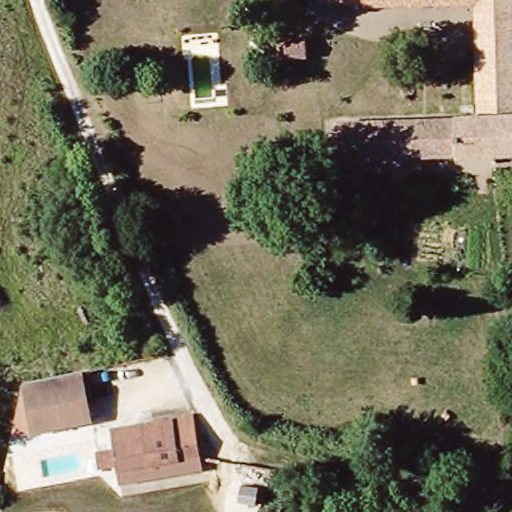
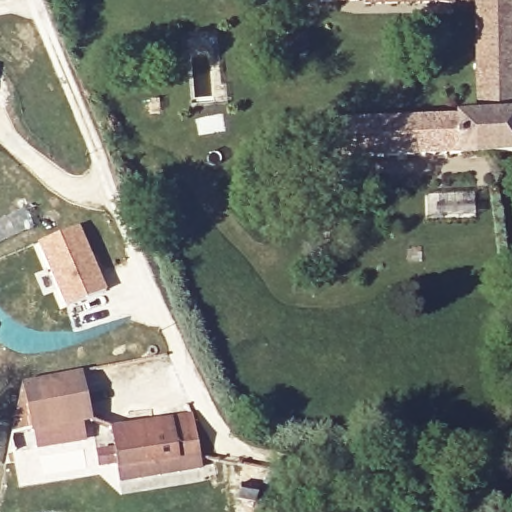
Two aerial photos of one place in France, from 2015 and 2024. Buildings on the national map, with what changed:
unchanged [(477,4),(366,6),(366,3),(323,4),(323,0),(478,0),(478,4),(477,4)]
unchanged [(478,4),(478,0),(512,0),(512,154),(340,160),(340,124),(461,120),(461,118),(481,117),(477,4),(478,4)]
unchanged [(307,39),(308,58),(289,59),(287,40),(307,39)]
new [(39,245),(80,227),(105,292),(65,308),(39,245)]
unchanged [(91,423),(33,435),(24,386),(81,374),(91,423)]
unchanged [(192,419),(200,459),(117,473),(116,468),(99,471),(96,455),(115,453),(111,431),(192,419)]

